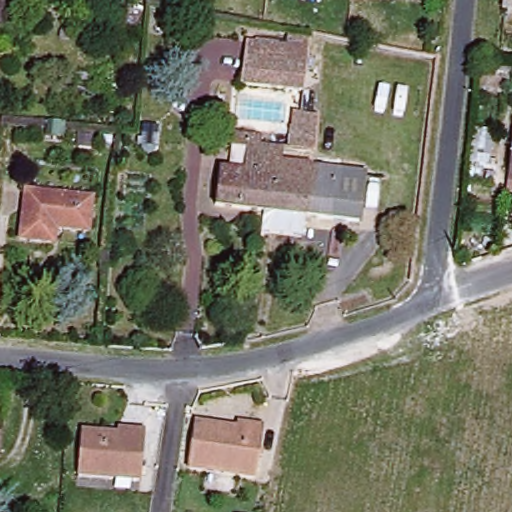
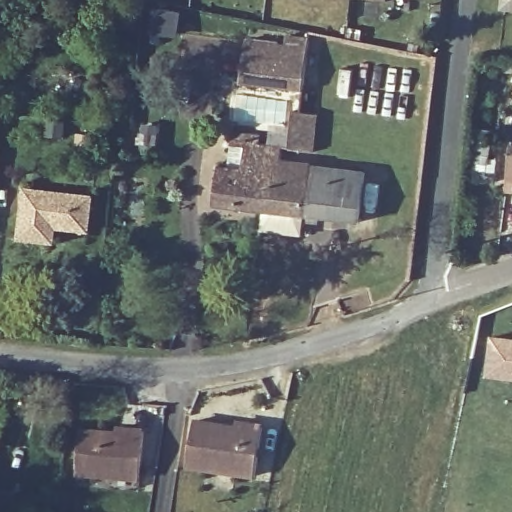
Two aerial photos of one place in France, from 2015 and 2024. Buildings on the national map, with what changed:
unchanged [(1,27),(0,27),(0,0),(4,0),(1,27)]
unchanged [(504,0),(512,0),(512,11),(503,10),(504,0)]
unchanged [(244,87),(248,43),(248,34),(313,40),(312,45),(312,49),(308,92),(244,87)]
unchanged [(282,109),(292,109),(301,110),(297,148),(278,145),(282,109)]
unchanged [(203,203),(206,165),(233,168),(236,140),(269,145),(268,157),(264,182),(254,181),(251,209),(203,203)]
unchanged [(512,150),(512,179),(509,179),(512,150)]
unchanged [(268,157),(295,160),(295,163),(351,170),(344,220),(251,209),(254,181),(264,182),(268,157)]
unchanged [(96,196),(93,230),(57,228),(56,243),(22,240),(26,190),(96,196)]
new [(512,380),(485,377),(490,335),(512,338),(512,380)]
unchanged [(236,425),(237,420),(264,422),(259,470),(190,463),(194,420),(236,425)]
unchanged [(114,433),(115,427),(144,429),(141,480),(75,476),(77,431),(114,433)]
unchanged [(1,432),(0,445),(0,432),(1,432)]

